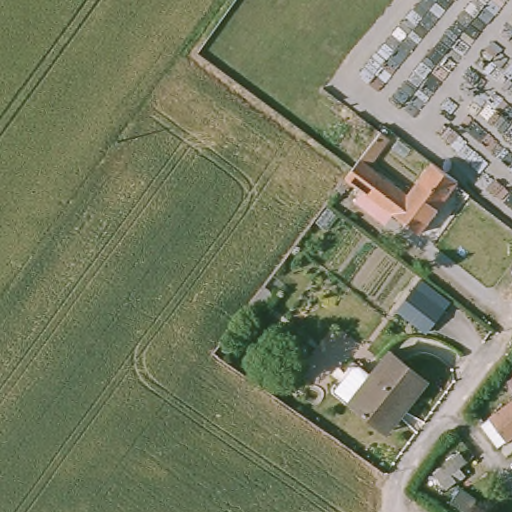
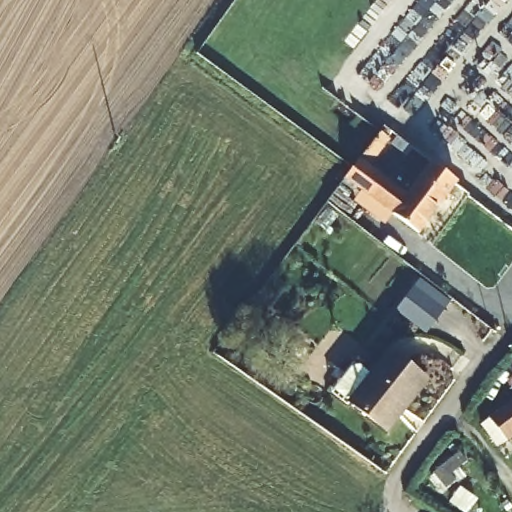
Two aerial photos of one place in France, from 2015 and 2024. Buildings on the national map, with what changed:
unchanged [(377,131),(387,139),(368,165),(407,194),(431,164),(455,182),(452,187),(418,231),(343,175),(377,131)]
unchanged [(397,312),(415,288),(445,310),(425,334),(397,312)]
unchanged [(382,433),(353,410),(352,412),(334,398),(358,368),(376,382),(395,358),(430,387),(412,410),(388,438),(382,433)]
unchanged [(507,440),(505,436),(490,419),(512,403),(512,437),(507,440)]

